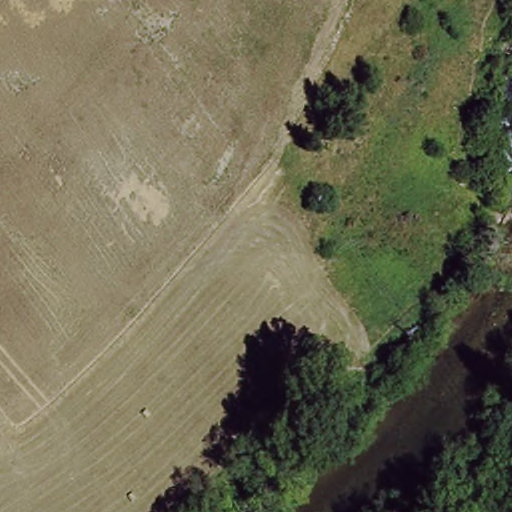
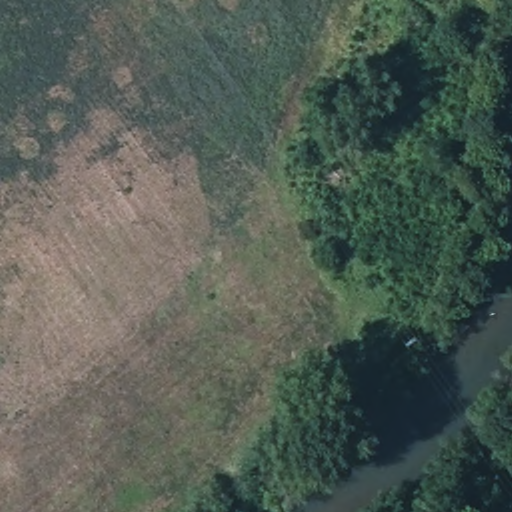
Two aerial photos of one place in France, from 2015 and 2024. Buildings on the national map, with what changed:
[]

